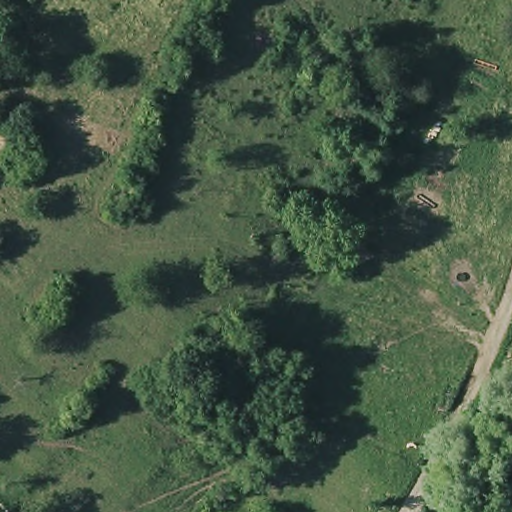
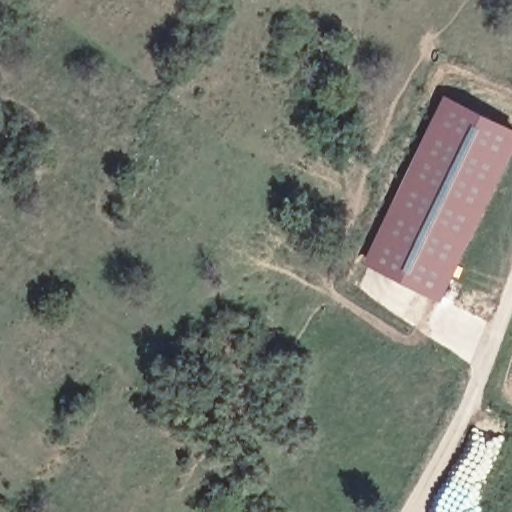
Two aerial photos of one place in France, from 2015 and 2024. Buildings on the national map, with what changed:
new [(512,150),(438,307),(365,269),(441,95),(512,130),(512,150)]

